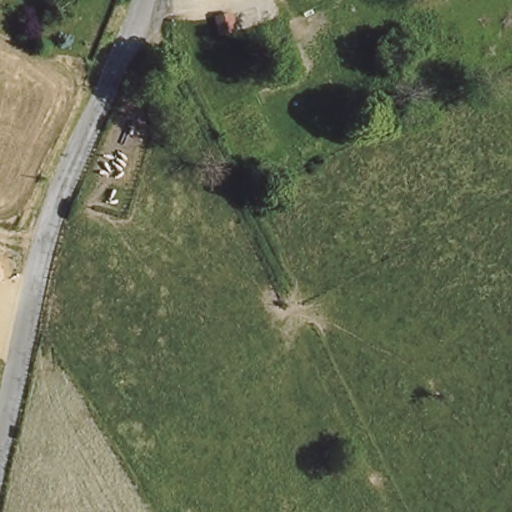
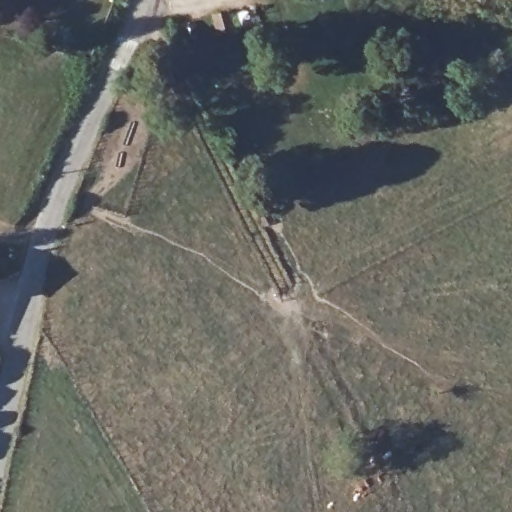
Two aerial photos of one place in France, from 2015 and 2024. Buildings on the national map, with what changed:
unchanged [(250,24),(234,30),(226,6),(243,0),(250,24)]

